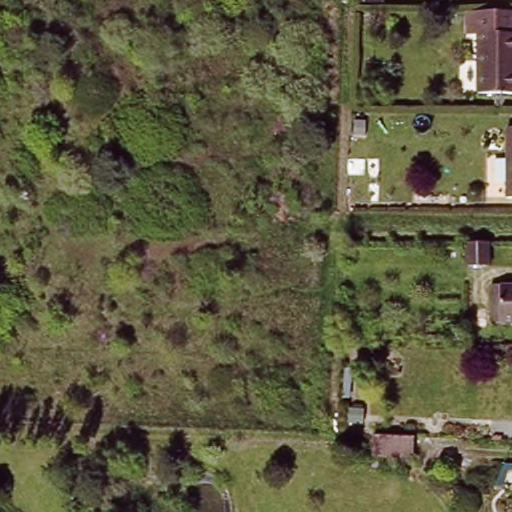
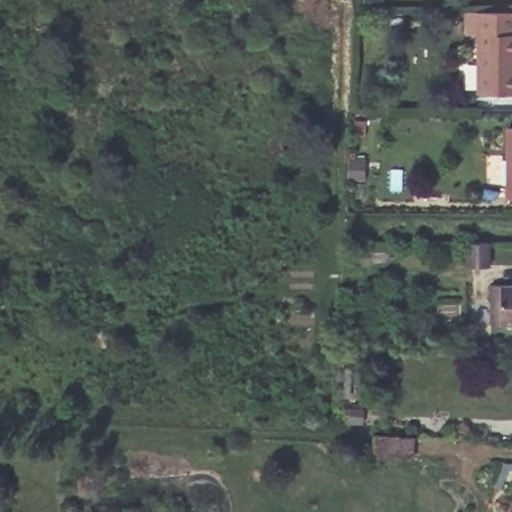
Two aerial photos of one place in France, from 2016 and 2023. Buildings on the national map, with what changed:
unchanged [(486,91),(485,32),(474,31),(475,11),(512,11),(512,91),(486,91)]
unchanged [(510,196),(510,127),(512,127),(512,196),(510,196)]
unchanged [(500,302),(500,286),(512,286),(512,326),(509,326),(499,326),(500,302)]
unchanged [(419,456),(375,454),(375,435),(421,436),(419,456)]

